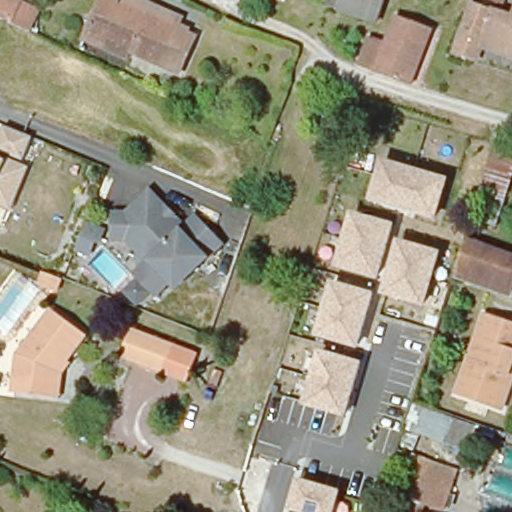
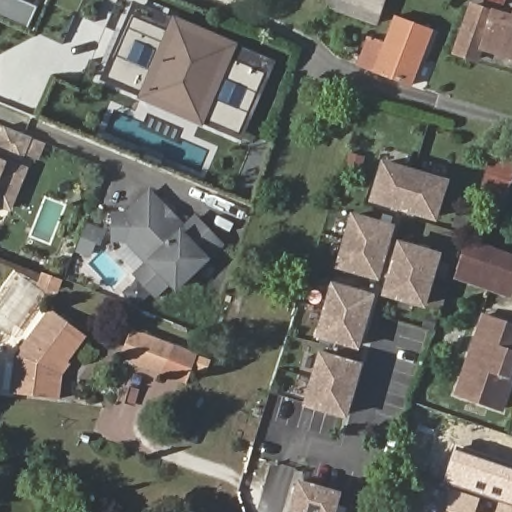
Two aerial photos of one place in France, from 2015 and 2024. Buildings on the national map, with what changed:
unchanged [(0,19),(0,0),(28,0),(44,6),(31,32),(0,19)]
demolished [(191,31),(204,37),(191,71),(134,50),(131,59),(86,41),(101,0),(145,0),(195,19),(191,31)]
new [(137,98),(138,95),(100,79),(134,0),(138,2),(155,9),(172,16),(173,14),(238,43),(238,44),(277,60),(242,140),(203,124),(203,125),(137,98)]
unchanged [(337,11),(340,0),(385,0),(377,25),(337,11)]
unchanged [(464,1),(464,0),(504,0),(501,11),(464,1)]
unchanged [(476,54),(473,64),(455,59),(466,16),(467,13),(508,24),(508,20),(512,8),(512,64),(476,54)]
unchanged [(385,70),(397,39),(406,18),(441,31),(433,53),(421,84),(385,70)]
unchanged [(0,205),(0,137),(5,126),(32,138),(22,161),(27,168),(12,210),(0,205)]
unchanged [(512,154),(512,178),(497,226),(474,219),(497,149),(512,154)]
unchanged [(375,198),(385,163),(449,180),(437,215),(375,198)]
unchanged [(128,211),(155,192),(183,234),(195,225),(216,255),(165,291),(160,284),(143,294),(127,272),(144,259),(128,236),(111,233),(116,209),(128,211)]
unchanged [(379,275),(340,264),(357,216),(394,228),(379,275)]
unchanged [(70,253),(84,222),(105,232),(89,259),(70,253)]
unchanged [(425,308),(381,294),(398,239),(442,252),(425,308)]
unchanged [(512,257),(512,294),(511,299),(455,279),(467,242),(512,257)]
unchanged [(322,335),(335,285),(372,295),(360,345),(322,335)]
unchanged [(69,367),(66,396),(58,394),(16,389),(22,349),(58,304),(91,327),(66,358),(73,363),(69,367)]
unchanged [(465,392),(493,314),(512,320),(512,409),(465,392)]
unchanged [(195,349),(185,379),(120,358),(130,327),(195,349)]
unchanged [(345,414),(309,403),(323,354),(360,365),(345,414)]
demolished [(512,440),(512,512),(479,512),(502,437),(512,440)]
new [(456,444),(512,464),(512,512),(444,512),(454,484),(444,481),(456,444)]
demolished [(402,509),(418,462),(461,476),(450,512),(433,506),(431,512),(413,512),(402,509)]
unchanged [(289,511),(298,479),(342,492),(335,512),(294,512),(289,511)]

